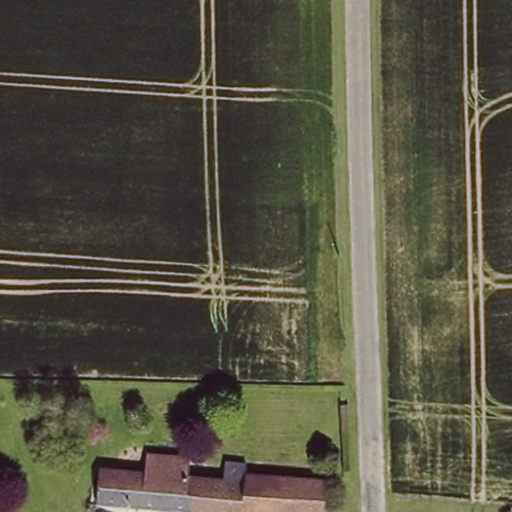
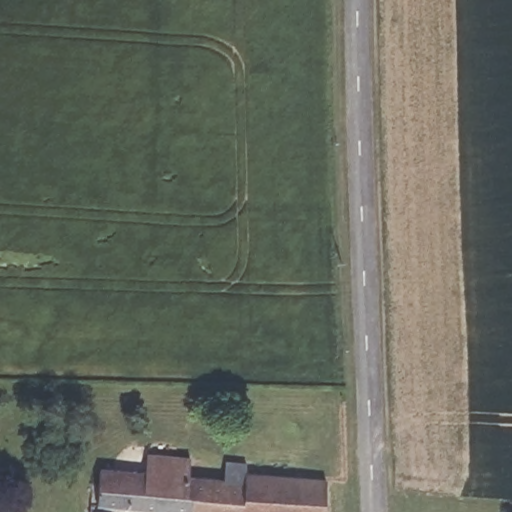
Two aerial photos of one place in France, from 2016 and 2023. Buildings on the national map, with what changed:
unchanged [(217,477),(250,481),(252,469),(273,472),(272,482),(327,488),(325,512),(203,512),(93,501),(95,483),(98,483),(100,466),(172,473),(175,454),(219,458),(217,477)]

